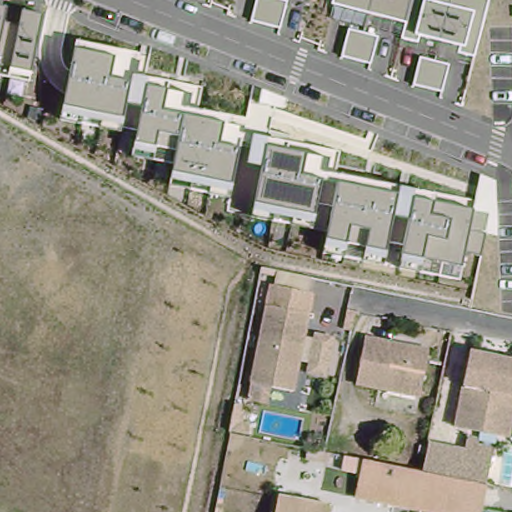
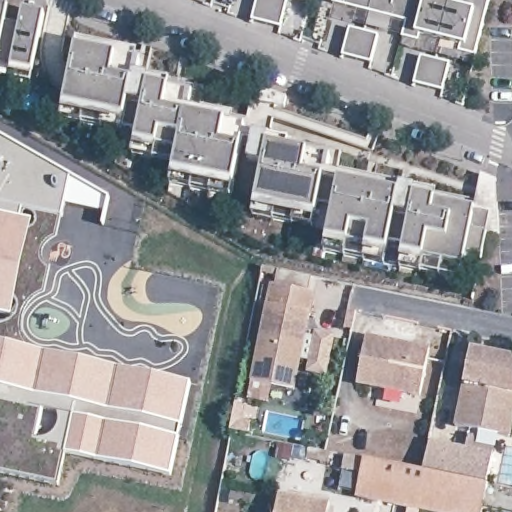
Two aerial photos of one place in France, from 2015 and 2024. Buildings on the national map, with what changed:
unchanged [(257,0),(283,0),(287,1),(280,29),(251,22),(257,0)]
unchanged [(333,0),(489,0),(475,57),(459,53),(460,46),(421,36),(419,43),(402,38),(406,23),(332,4),(333,0)]
unchanged [(7,8),(4,24),(20,27),(24,10),(43,15),(31,79),(0,73),(0,6),(7,8)]
unchanged [(349,29),(378,36),(370,64),(356,60),(342,57),(349,29)]
unchanged [(64,106),(76,51),(77,41),(140,54),(135,75),(147,78),(168,82),(168,90),(193,95),(191,107),(234,117),(234,125),(245,127),(239,148),(233,184),(230,197),(171,185),(172,172),(175,162),(132,157),(133,150),(136,143),(143,108),(125,104),(122,118),(120,131),(61,120),(64,106)]
unchanged [(420,57),(434,61),(449,65),(442,92),(412,85),(420,57)]
new [(103,226),(29,212),(7,316),(0,314),(0,136),(109,199),(103,226)]
unchanged [(252,136),(268,138),(288,143),(287,150),(306,154),(328,159),(327,171),(399,185),(414,189),(437,194),(435,201),(473,209),(479,176),(495,181),(499,236),(485,233),(480,256),(465,253),(460,280),(323,253),(326,240),(333,206),(317,203),(314,222),(314,228),(254,216),(255,204),(263,166),(247,163),(252,136)]
unchanged [(278,288),(319,297),(298,394),(256,385),(278,288)]
unchanged [(370,337),(437,350),(426,399),(360,385),(370,337)]
new [(191,388),(173,476),(66,453),(59,485),(0,473),(0,348),(191,388)]
unchanged [(512,438),(457,427),(473,354),(512,362),(512,438)]
unchanged [(490,455),(484,484),(421,472),(416,471),(422,441),(490,455)]
unchanged [(353,498),(359,460),(416,471),(421,472),(414,509),(353,498)]
unchanged [(478,512),(430,512),(414,509),(421,472),(484,484),(478,512)]
unchanged [(325,512),(274,512),(277,498),(326,507),(325,512)]

